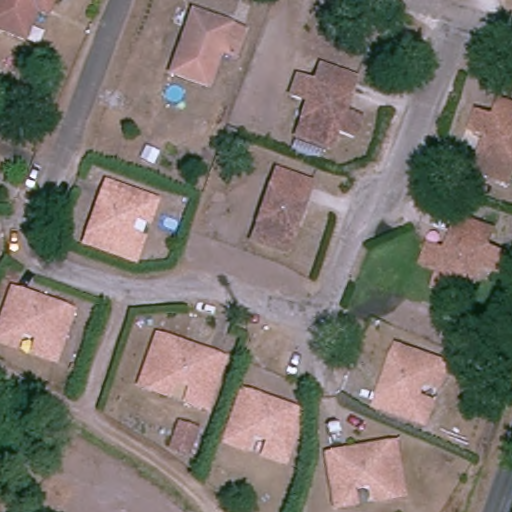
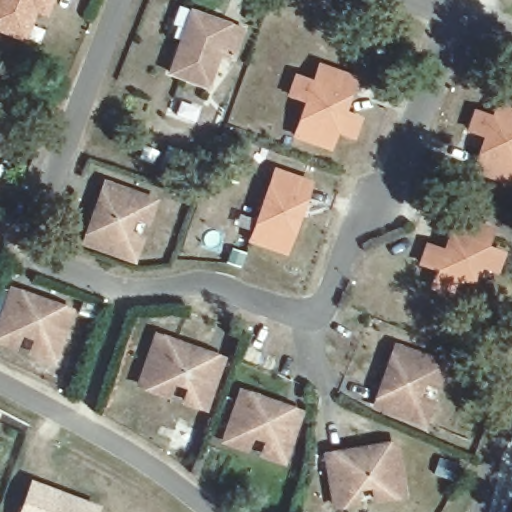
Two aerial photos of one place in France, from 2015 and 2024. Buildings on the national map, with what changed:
unchanged [(23,31),(0,20),(0,0),(51,0),(50,1),(46,13),(34,8),(23,31)]
unchanged [(166,66),(177,33),(187,5),(191,6),(238,22),(229,49),(214,44),(203,78),(166,66)]
unchanged [(361,119),(355,139),(339,134),(333,152),(296,139),(308,103),(291,97),(297,81),(313,86),(319,70),(355,82),(346,114),(361,119)]
unchanged [(498,100),(512,105),(512,181),(475,167),(487,134),(470,128),(476,111),(491,116),(498,100)]
unchanged [(150,190),(143,208),(131,204),(123,223),(135,227),(126,252),(78,232),(101,171),(150,190)]
unchanged [(313,187),(291,251),(255,239),(276,174),(313,187)]
unchanged [(447,249),(458,216),(495,230),(491,245),(506,250),(500,269),(485,265),(480,280),(462,275),(456,292),(435,285),(441,266),(425,261),(430,244),(447,249)]
unchanged [(73,312),(57,360),(36,353),(41,340),(23,333),(18,346),(0,339),(17,292),(73,312)]
unchanged [(223,351),(205,399),(189,392),(194,379),(175,371),(169,384),(142,374),(160,327),(223,351)]
unchanged [(450,359),(443,378),(429,374),(421,396),(434,400),(427,418),(380,401),(400,342),(450,359)]
unchanged [(306,412),(287,461),(268,454),(273,442),(253,435),(249,447),(226,438),(245,390),(306,412)]
unchanged [(397,432),(404,494),(376,500),(374,484),(355,487),(357,502),(336,504),(328,442),(397,432)]
new [(31,480),(100,507),(99,512),(19,512),(31,480)]

